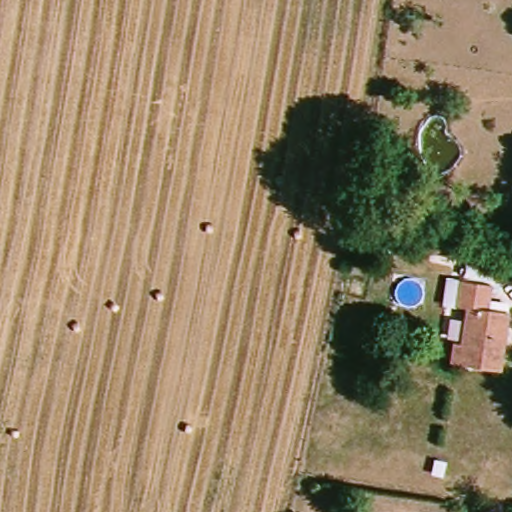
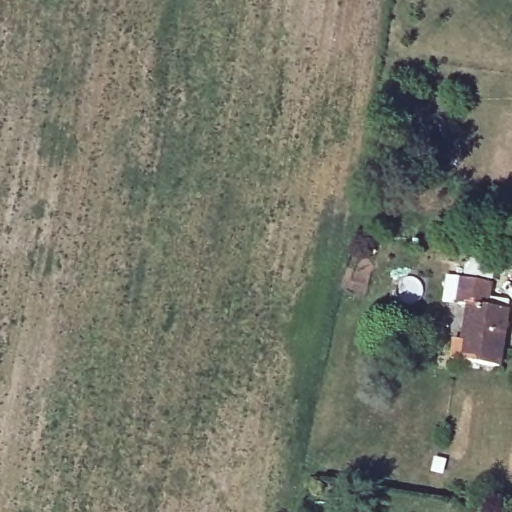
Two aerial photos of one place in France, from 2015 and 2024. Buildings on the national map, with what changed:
unchanged [(503,317),(496,371),(445,364),(447,346),(454,347),(459,312),(451,312),(452,285),(488,287),(487,316),(503,317)]

